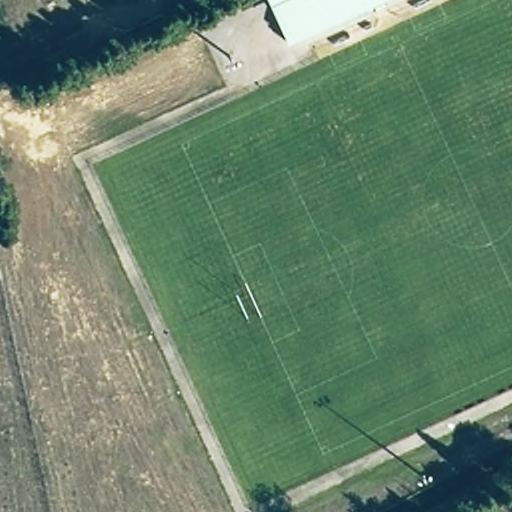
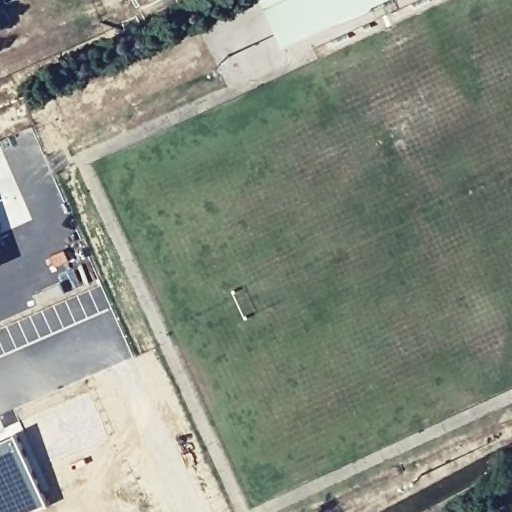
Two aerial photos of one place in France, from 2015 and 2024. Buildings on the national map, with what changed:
unchanged [(382,0),(287,44),(267,0),(382,0)]
new [(4,266),(0,268),(0,257),(4,266)]
new [(17,427),(51,505),(34,512),(0,512),(0,436),(17,427)]

